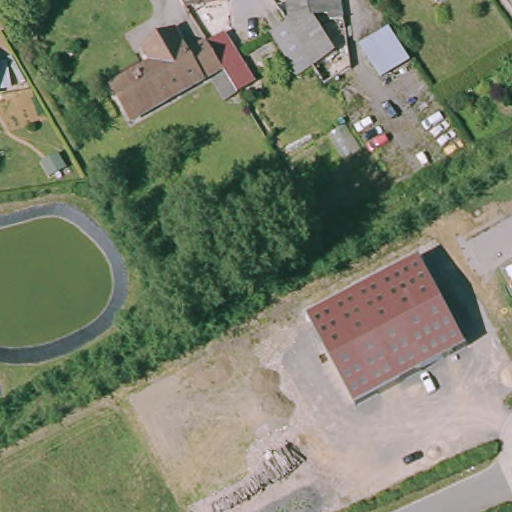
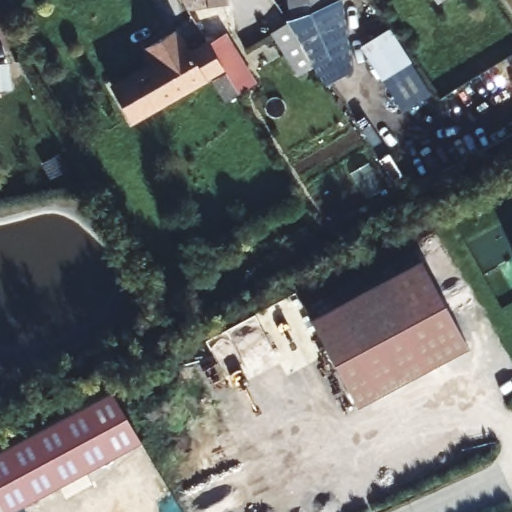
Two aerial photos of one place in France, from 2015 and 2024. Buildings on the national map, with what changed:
unchanged [(185,5),(182,0),(227,0),(227,7),(185,5)]
unchanged [(320,15),(342,51),(322,64),(297,24),(293,0),(356,0),(357,11),(320,15)]
unchanged [(205,34),(229,23),(239,38),(230,43),(260,85),(243,95),(224,63),(205,34)]
unchanged [(390,25),(415,60),(383,85),(360,47),(390,25)]
unchanged [(140,112),(120,80),(155,59),(150,49),(176,34),(184,47),(205,34),(224,63),(140,112)]
unchanged [(468,348),(355,408),(309,319),(420,259),(468,348)]
new [(0,504),(0,449),(109,391),(140,441),(9,512),(4,512),(0,504)]

